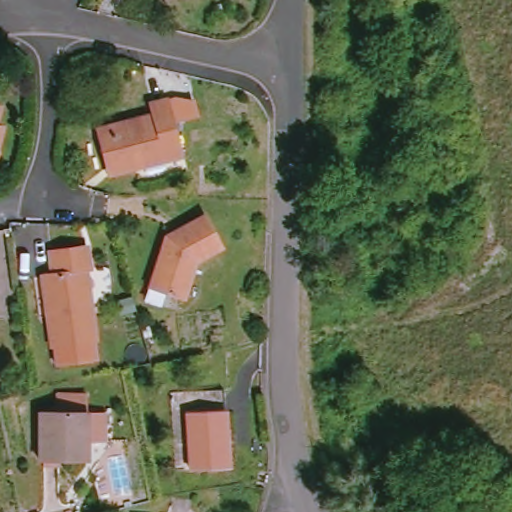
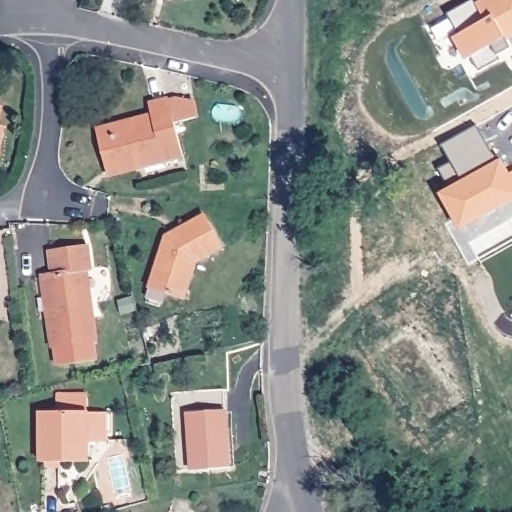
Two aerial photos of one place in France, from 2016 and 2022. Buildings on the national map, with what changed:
new [(512,46),(512,58),(503,63),(501,60),(481,72),(473,58),(467,60),(454,39),(459,35),(447,14),(471,0),(475,0),(477,3),(482,0),(512,0),(512,37),(507,39),(512,46)]
unchanged [(97,155),(98,116),(154,118),(155,105),(176,106),(176,164),(136,163),(97,163),(97,155)]
new [(456,219),(442,196),(450,190),(444,179),(436,183),(428,169),(448,156),(442,146),(475,128),(495,164),(502,161),(510,174),(512,173),(512,221),(471,244),(481,259),(469,267),(446,225),(456,219)]
unchanged [(201,213),(220,242),(194,257),(183,297),(151,289),(169,230),(201,213)]
unchanged [(91,269),(84,269),(88,295),(91,294),(96,338),(93,338),(96,359),(57,364),(54,343),(51,344),(40,277),(53,275),(50,249),(87,244),(91,269)]
unchanged [(132,302),(136,314),(122,318),(119,304),(132,302)]
unchanged [(185,401),(222,399),(227,476),(190,479),(185,401)]
unchanged [(75,409),(93,406),(100,433),(82,437),(87,456),(42,465),(30,419),(75,409)]

